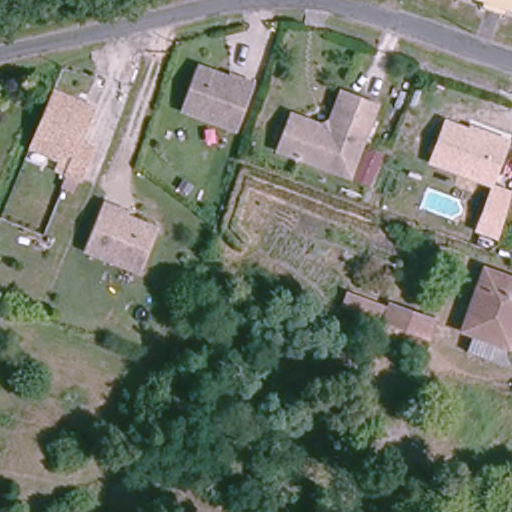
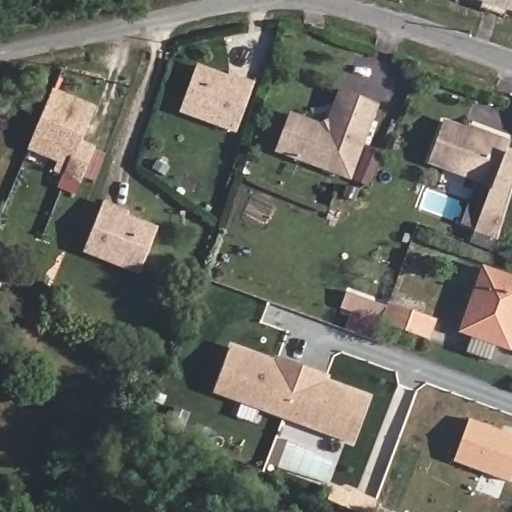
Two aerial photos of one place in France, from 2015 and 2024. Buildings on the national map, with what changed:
unchanged [(512,12),(474,0),(512,0),(512,12)]
unchanged [(179,109),(194,66),(259,91),(243,134),(179,109)]
unchanged [(36,127),(53,87),(93,102),(80,137),(94,142),(81,174),(58,164),(62,154),(31,142),(36,127)]
unchanged [(345,94),(377,103),(349,180),(276,154),(283,137),(288,122),(304,127),(330,135),(345,94)]
unchanged [(494,183),(512,191),(498,239),(475,232),(489,187),(428,164),(446,118),(467,127),(469,125),(511,141),(494,183)]
unchanged [(161,227),(144,271),(90,251),(104,207),(161,227)]
unchanged [(483,266),(512,276),(512,350),(460,331),(483,266)]
unchanged [(432,342),(344,305),(349,292),(388,307),(392,299),(441,318),(432,342)]
new [(274,358),(276,353),(331,374),(329,381),(371,397),(353,443),(212,392),(232,345),(274,358)]
new [(455,460),(471,418),(512,434),(512,478),(511,481),(455,460)]

